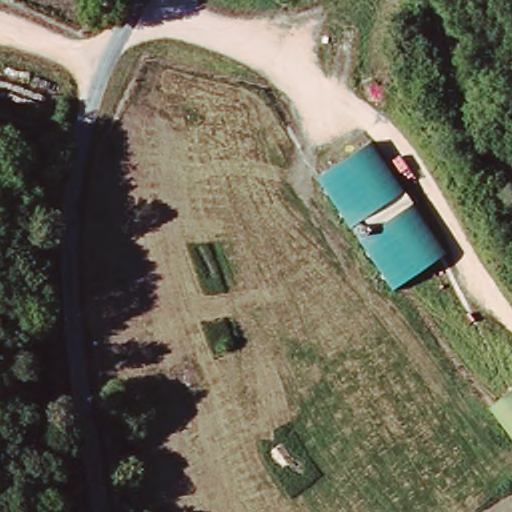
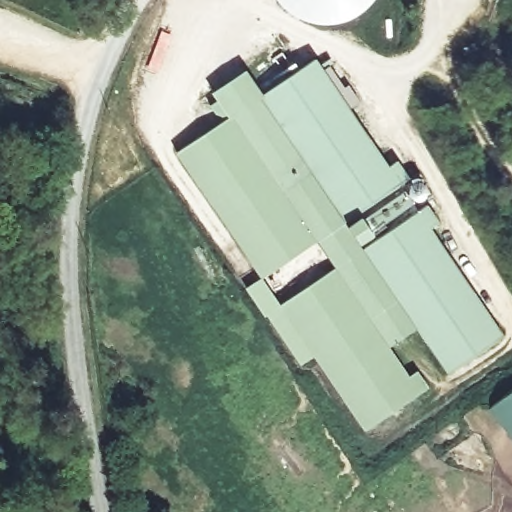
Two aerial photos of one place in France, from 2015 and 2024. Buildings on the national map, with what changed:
new [(410,179),(343,222),(258,98),(315,60),(387,167),(397,159),(410,179)]
new [(258,98),(343,222),(348,226),(361,217),(363,220),(408,190),(410,187),(413,184),(417,182),(423,184),(426,186),(428,191),(427,195),(426,198),(420,201),(373,234),(360,244),(362,248),(416,328),(388,347),(410,377),(418,371),(428,387),(365,431),(280,305),(336,268),(318,242),(263,280),(176,154),(221,122),(210,106),(218,102),(212,93),(246,70),(263,95),(258,98)]
demolished [(368,142),(443,253),(392,288),(317,177),(368,142)]
new [(440,224),(431,230),(505,336),(448,375),(362,248),(427,204),(440,224)]
unchanged [(500,407),(512,397),(512,424),(500,407)]

